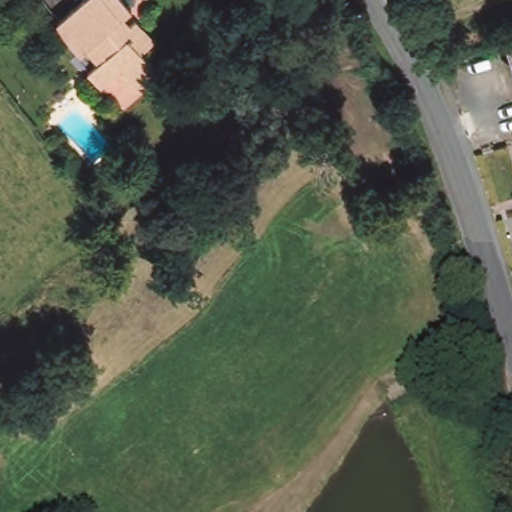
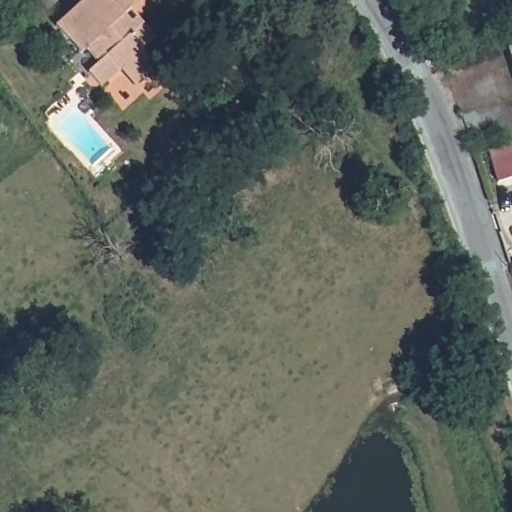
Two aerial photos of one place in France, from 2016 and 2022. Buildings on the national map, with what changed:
unchanged [(119,0),(128,9),(120,19),(126,26),(133,22),(148,41),(137,54),(149,68),(132,85),(117,69),(99,86),(87,73),(97,64),(85,50),(77,55),(53,29),(83,0),(119,0)]
unchanged [(512,31),(512,73),(499,35),(512,31)]

